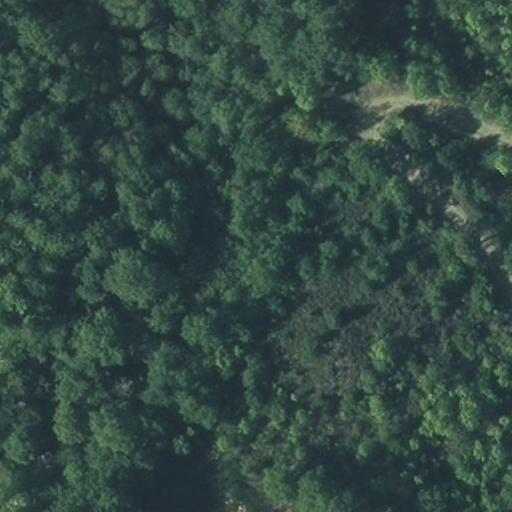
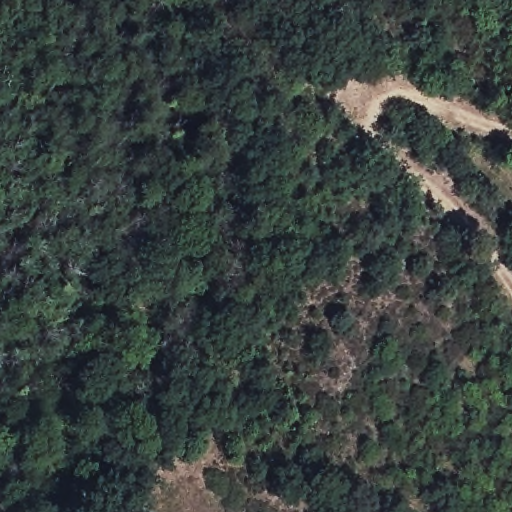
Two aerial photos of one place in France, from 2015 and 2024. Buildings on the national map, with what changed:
[]

